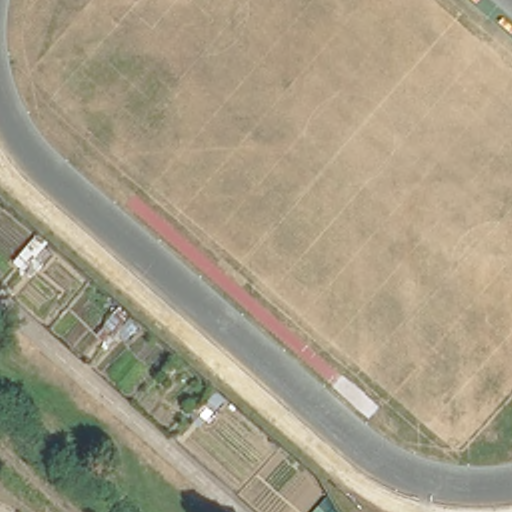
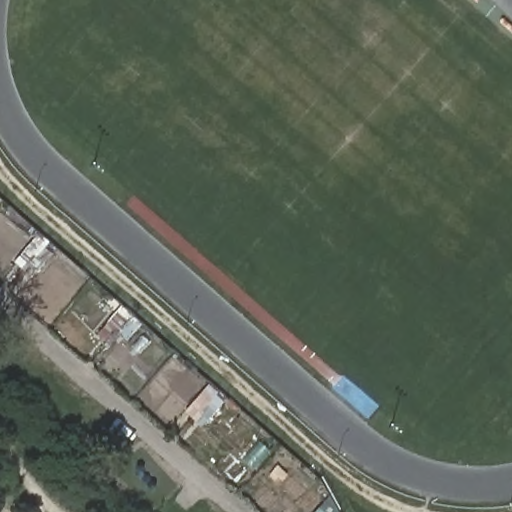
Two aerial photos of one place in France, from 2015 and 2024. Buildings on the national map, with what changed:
unchanged [(12,258),(31,235),(50,251),(30,275),(12,258)]
unchanged [(126,346),(103,325),(116,307),(143,328),(126,346)]
unchanged [(203,427),(179,410),(193,394),(200,402),(214,384),(228,396),(203,427)]
unchanged [(337,512),(324,512),(330,506),(337,512)]

